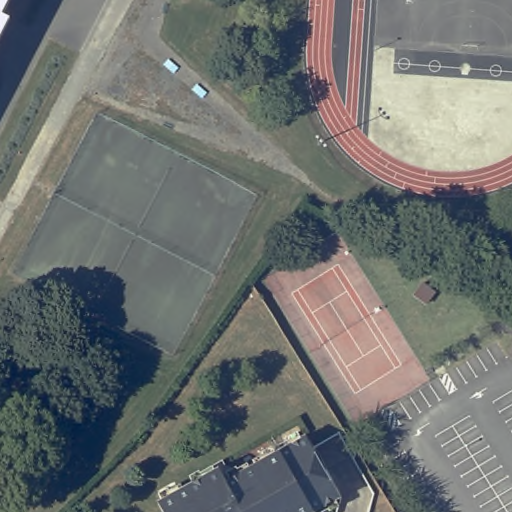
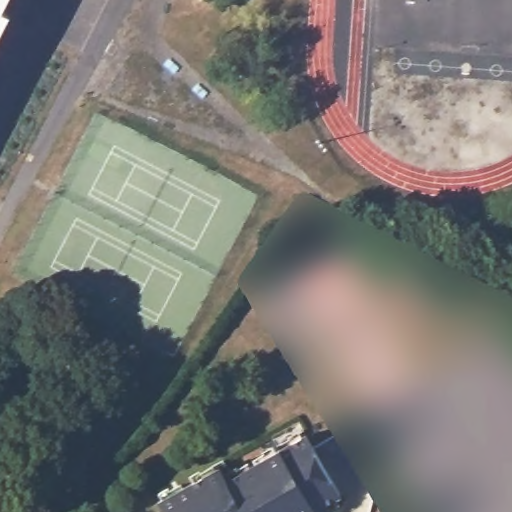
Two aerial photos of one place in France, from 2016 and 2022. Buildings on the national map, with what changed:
unchanged [(5,11),(12,15),(0,39),(0,0),(11,0),(5,11)]
unchanged [(222,468),(229,481),(308,437),(343,497),(317,512),(166,512),(161,503),(222,468)]

